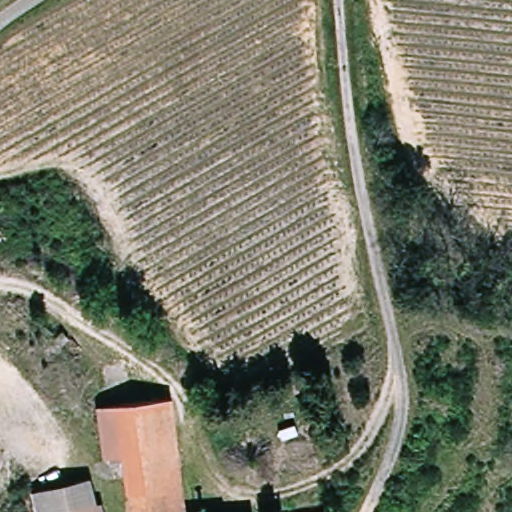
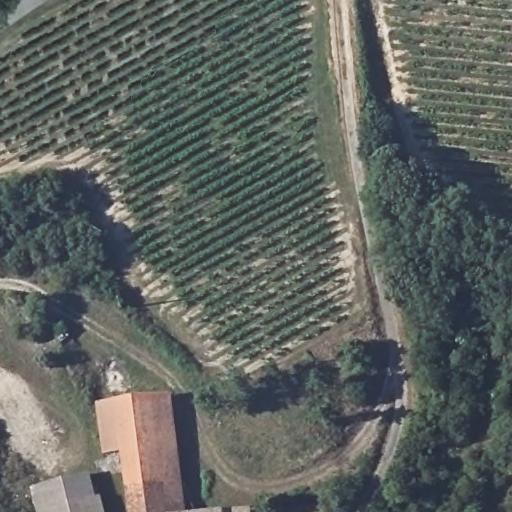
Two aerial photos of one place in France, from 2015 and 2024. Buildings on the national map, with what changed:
unchanged [(164,463),(126,466),(120,413),(147,409),(177,404),(179,417),(189,512),(168,512),(164,463)]
unchanged [(126,466),(164,463),(168,512),(130,512),(126,466)]
unchanged [(32,490),(89,475),(97,492),(111,492),(115,512),(38,512),(32,490)]
unchanged [(332,501),(332,512),(264,512),(264,508),(332,501)]
unchanged [(264,508),(264,512),(229,512),(264,508)]

